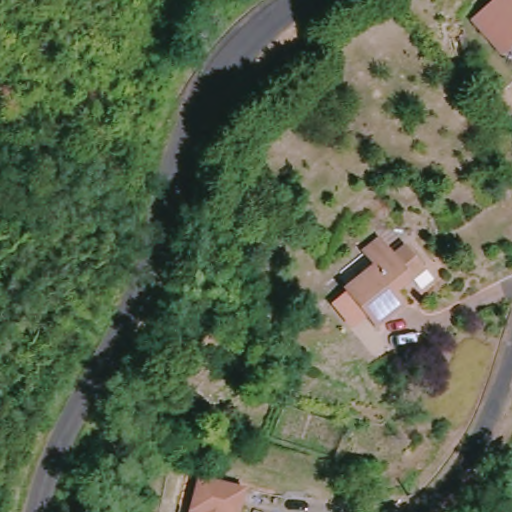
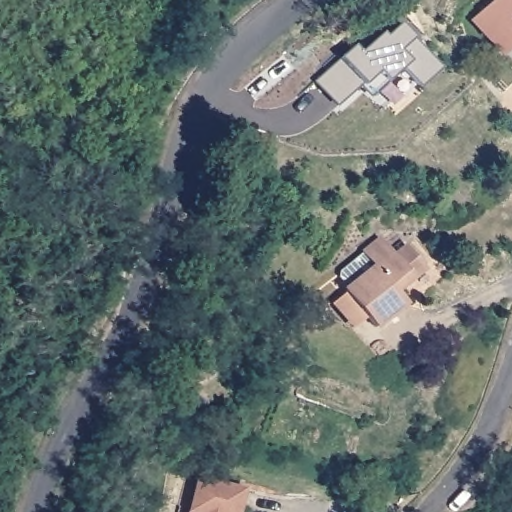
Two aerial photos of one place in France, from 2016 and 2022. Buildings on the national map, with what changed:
unchanged [(479,32),(464,15),(480,0),(512,0),(512,40),(508,44),(498,53),(479,32)]
new [(421,85),(415,82),(379,112),(360,97),(339,114),(314,75),(359,42),(363,49),(381,30),(388,37),(401,26),(439,64),(421,85)]
unchanged [(512,78),(500,89),(469,57),(484,45),(512,78)]
unchanged [(397,255),(409,244),(428,265),(418,277),(414,274),(401,288),(413,301),(387,328),(354,294),(378,269),(364,256),(382,239),(397,255)]
unchanged [(251,489),(246,512),(199,512),(208,478),(251,489)]

